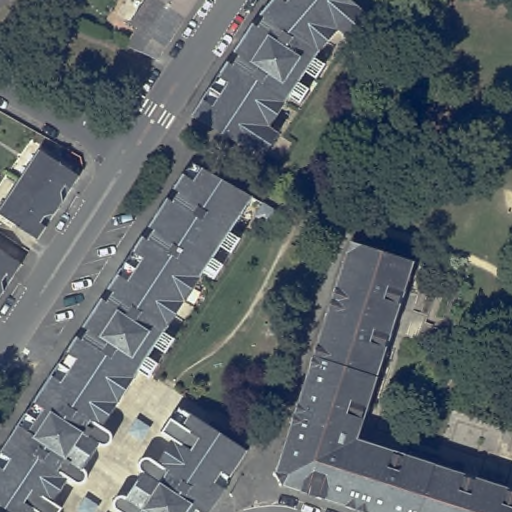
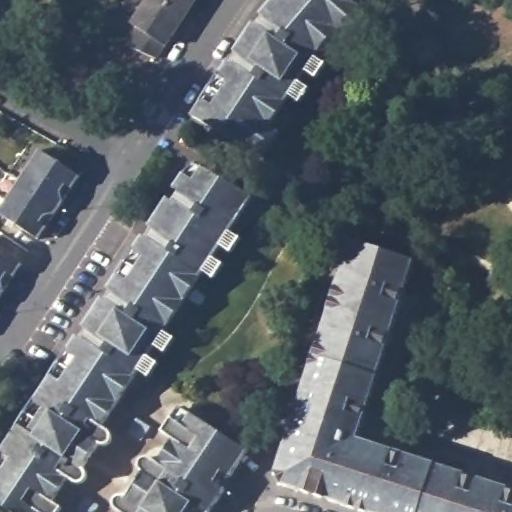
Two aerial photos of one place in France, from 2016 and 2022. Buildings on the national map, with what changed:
unchanged [(141,33),(136,29),(156,0),(189,21),(169,51),(168,51),(160,63),(130,51),(141,33)]
unchanged [(156,0),(202,0),(189,21),(156,0)]
unchanged [(304,103),(292,95),(274,127),(283,133),(267,158),(195,116),(206,100),(221,76),(231,62),(236,65),(244,54),(238,50),(256,23),(262,27),(269,16),(265,12),(276,0),(355,0),(373,14),(352,38),(342,30),(318,57),(330,65),(321,78),(309,71),(302,81),(313,89),(304,103)]
unchanged [(38,149),(78,177),(65,198),(58,207),(18,181),(38,149)]
unchanged [(0,458),(4,452),(21,425),(36,402),(54,375),(70,352),(79,337),(85,341),(92,330),(86,326),(104,299),(110,303),(117,291),(111,288),(121,274),(136,251),(145,237),(150,241),(158,230),(152,226),(170,199),(175,203),(183,191),(177,188),(186,174),(194,162),(205,169),(256,197),(233,231),(244,238),(235,253),(224,245),(215,258),(227,266),(218,279),(206,271),(166,331),(179,339),(169,353),(157,346),(150,357),(161,364),(153,378),(141,370),(105,426),(111,431),(114,434),(115,438),(113,443),(110,445),(106,445),(103,444),(86,470),(89,473),(90,477),(89,480),(85,483),(80,483),(78,482),(71,478),(56,501),(65,508),(63,512),(13,512),(0,503),(0,458)]
unchanged [(0,208),(18,181),(58,207),(45,228),(36,240),(0,215),(0,208)]
unchanged [(280,473),(355,241),(419,261),(410,291),(407,291),(403,303),(405,304),(395,335),(393,334),(388,347),(391,348),(372,407),(369,406),(365,419),(368,420),(361,439),(396,450),(395,453),(408,457),(409,455),(468,474),(467,476),(480,481),(481,478),(511,488),(510,490),(512,491),(512,512),(367,512),(286,486),(280,473)]
unchanged [(13,277),(8,284),(0,296),(0,250),(21,264),(13,277)]
unchanged [(113,507),(112,503),(114,498),(117,496),(121,495),(125,497),(141,472),(138,469),(138,464),(141,459),(143,458),(147,458),(150,459),(156,463),(171,440),(160,432),(170,418),(178,406),(189,413),(206,424),(210,418),(246,442),(242,447),(247,451),(230,477),(225,489),(210,512),(118,512),(116,511),(113,507)]
unchanged [(126,432),(136,418),(150,427),(141,441),(126,432)]
unchanged [(84,496),(99,506),(95,512),(78,512),(76,510),(84,496)]

